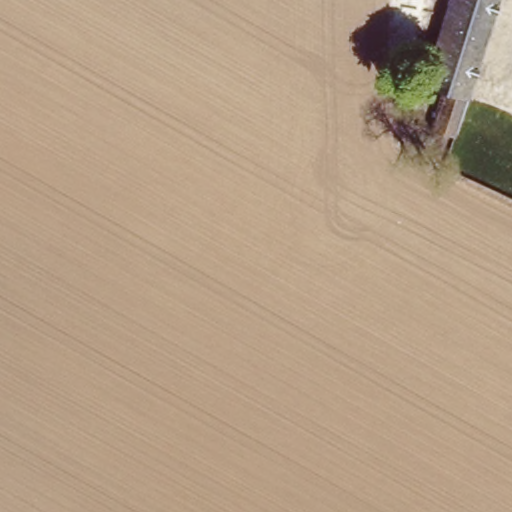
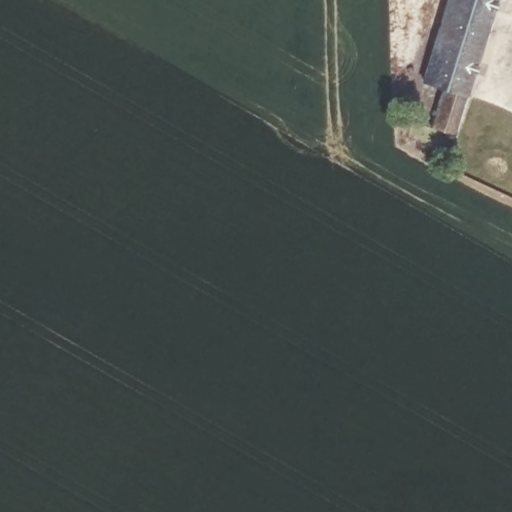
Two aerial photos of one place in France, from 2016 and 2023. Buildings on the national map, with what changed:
unchanged [(432,126),(445,88),(425,82),(451,0),(498,0),(455,133),(432,126)]

